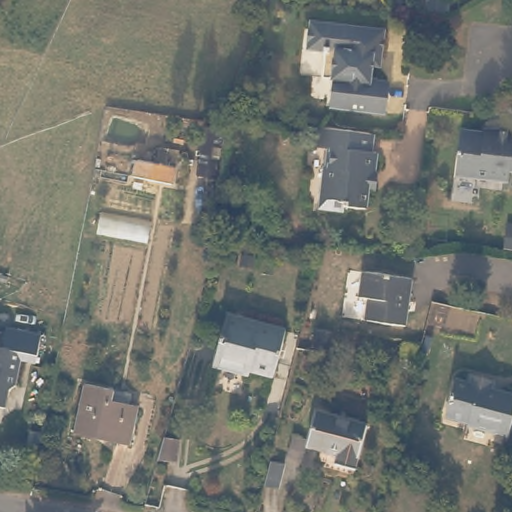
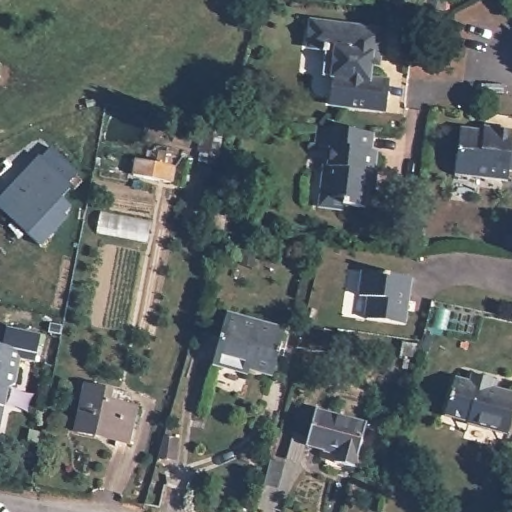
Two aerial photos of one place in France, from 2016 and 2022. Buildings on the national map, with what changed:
unchanged [(375,28),(373,54),(365,53),(362,78),(380,80),(377,110),(325,105),(328,77),(316,76),(318,49),(301,47),(303,21),(375,28)]
unchanged [(217,166),(200,163),(207,119),(224,122),(217,166)]
unchanged [(512,140),(512,169),(506,168),(504,179),(453,174),(457,128),(479,130),(480,125),(490,126),(510,129),(509,140),(512,140)]
unchanged [(365,188),(363,207),(341,204),(340,209),(315,206),(320,165),(323,165),(326,147),(314,145),(316,126),(372,132),(370,150),(375,151),(373,173),(371,189),(365,188)]
new [(63,197),(73,207),(67,214),(70,218),(41,246),(29,234),(0,207),(0,198),(41,155),(44,158),(53,149),(79,173),(69,182),(73,186),(63,197)]
unchanged [(177,164),(176,179),(140,175),(141,160),(177,164)]
unchanged [(406,279),(398,325),(362,319),(365,298),(354,296),(358,272),(406,279)]
unchanged [(210,373),(211,368),(225,322),(284,338),(271,386),(246,379),(245,384),(210,373)]
unchanged [(13,405),(0,403),(0,343),(11,345),(15,326),(49,333),(43,361),(28,358),(23,383),(18,406),(13,405)]
unchanged [(488,396),(487,404),(510,410),(500,449),(461,439),(464,429),(441,423),(448,395),(460,398),(463,390),(481,394),(488,396)]
unchanged [(120,400),(119,413),(127,414),(122,449),(68,443),(73,395),(120,400)]
unchanged [(364,438),(352,481),(332,475),(334,466),(303,457),(313,423),(364,438)]
unchanged [(180,441),(176,461),(158,457),(163,437),(180,441)]
unchanged [(262,459),(275,462),(270,484),(256,481),(262,459)]

